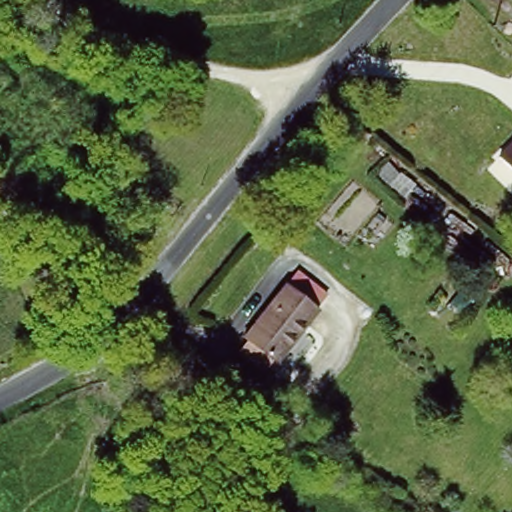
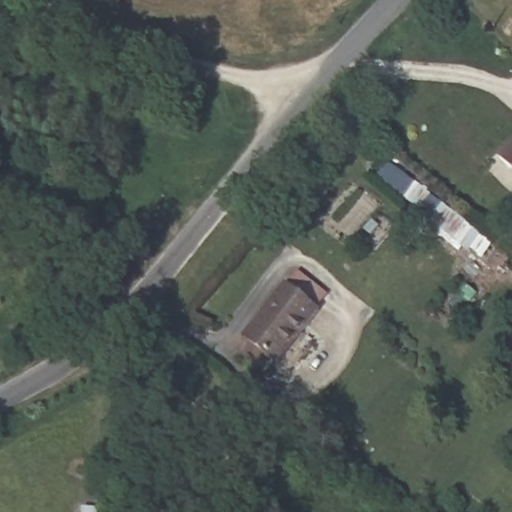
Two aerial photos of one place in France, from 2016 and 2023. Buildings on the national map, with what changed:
unchanged [(512,160),(502,151),(512,142),(512,160)]
unchanged [(237,353),(250,337),(247,334),(287,287),(319,313),(279,361),(276,359),(264,374),(237,353)]

